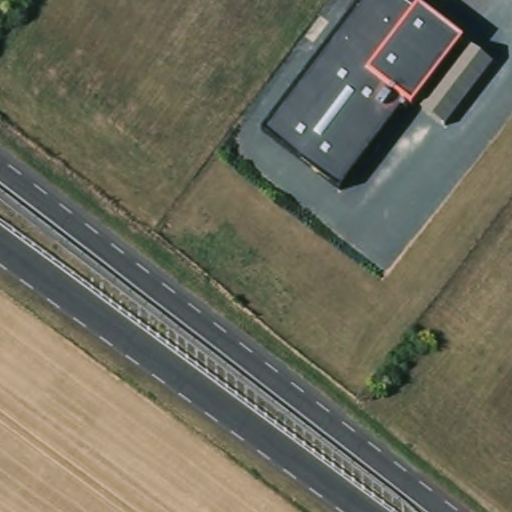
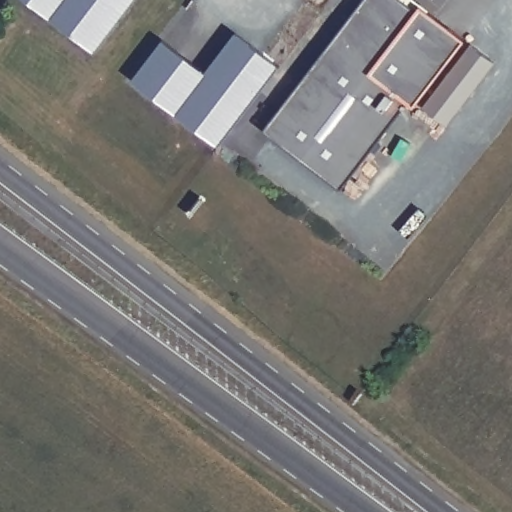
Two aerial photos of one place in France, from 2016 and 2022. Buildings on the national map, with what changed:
new [(134,0),(95,52),(27,0),(134,0)]
unchanged [(400,0),(415,11),(418,5),(463,39),(412,107),(406,103),(340,190),(263,131),(362,0),(400,0)]
new [(217,147),(131,81),(163,41),(205,72),(235,33),(278,66),(217,147)]

